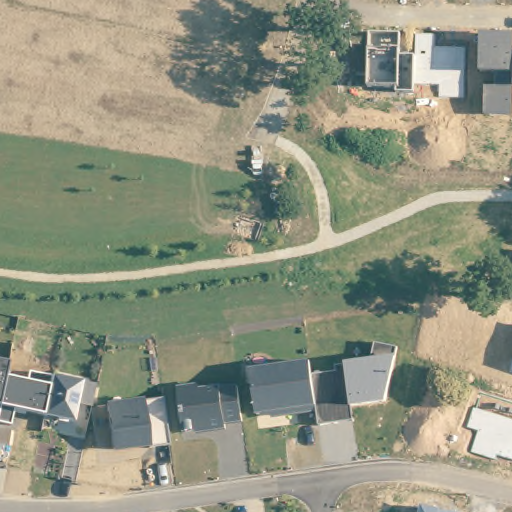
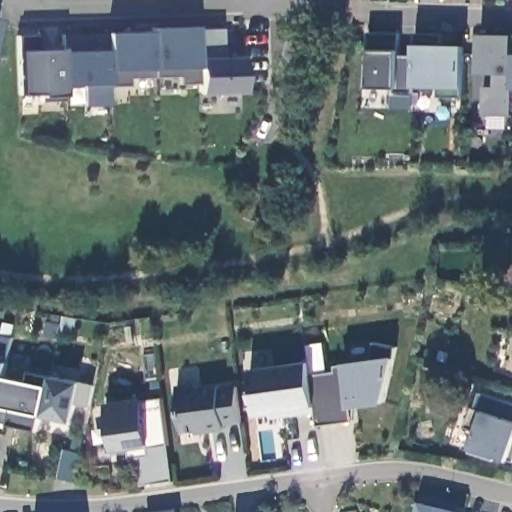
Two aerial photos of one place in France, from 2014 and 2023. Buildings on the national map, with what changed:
new [(221,58),(240,57),(244,92),(197,94),(197,82),(176,83),(176,77),(125,78),(124,86),(107,87),(106,106),(77,107),(79,84),(60,84),(60,94),(17,94),(17,49),(16,37),(36,37),(35,49),(61,48),(60,34),(105,32),(151,31),(152,27),(195,26),(196,31),(222,29),(221,58)]
unchanged [(368,51),(367,33),(397,32),(397,50),(397,57),(415,57),(415,42),(414,34),(442,34),(441,44),(463,44),(462,87),(462,97),(438,97),(437,87),(412,86),(412,109),(392,110),(392,87),(367,87),(368,51)]
unchanged [(486,114),(486,86),(496,86),(495,72),(482,71),(482,34),(512,34),(512,115),(486,114)]
unchanged [(273,418),(272,413),(258,415),(251,369),(310,360),(313,374),(336,371),(335,364),(346,362),(370,358),(376,342),(398,348),(397,356),(386,402),(352,406),(355,421),(318,425),(317,412),(273,418)]
unchanged [(75,421),(45,415),(17,408),(12,425),(0,423),(0,359),(10,361),(7,376),(27,380),(30,371),(55,374),(82,380),(97,383),(92,406),(79,406),(75,421)]
unchanged [(227,425),(227,429),(197,434),(196,430),(187,431),(178,385),(197,382),(201,388),(221,385),(221,387),(237,385),(243,422),(227,425)]
unchanged [(497,454),(495,460),(470,452),(472,446),(476,429),(467,426),(472,407),(475,407),(479,393),(512,403),(512,461),(509,459),(497,454)]
unchanged [(114,451),(108,403),(144,398),(144,400),(163,397),(170,444),(114,451)]
unchanged [(445,512),(421,512),(422,506),(445,512)]
new [(180,512),(165,512),(180,510),(180,512)]

